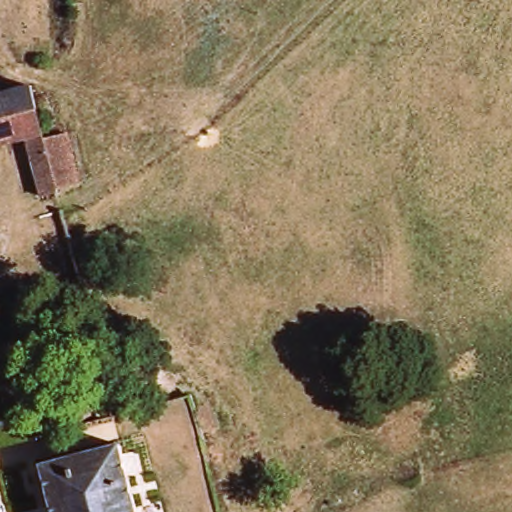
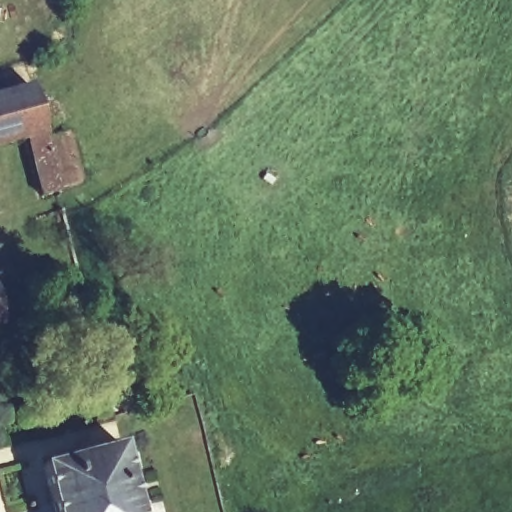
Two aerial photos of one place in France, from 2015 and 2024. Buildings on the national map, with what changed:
unchanged [(44,138),(65,133),(79,185),(51,192),(35,196),(20,142),(0,147),(0,95),(30,87),(44,138)]
unchanged [(39,469),(125,444),(142,512),(49,512),(39,469)]

